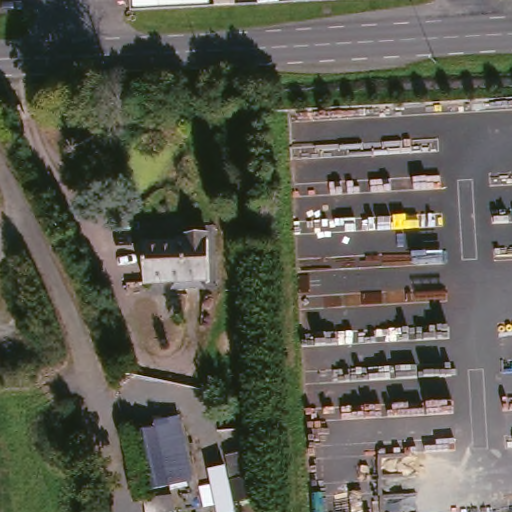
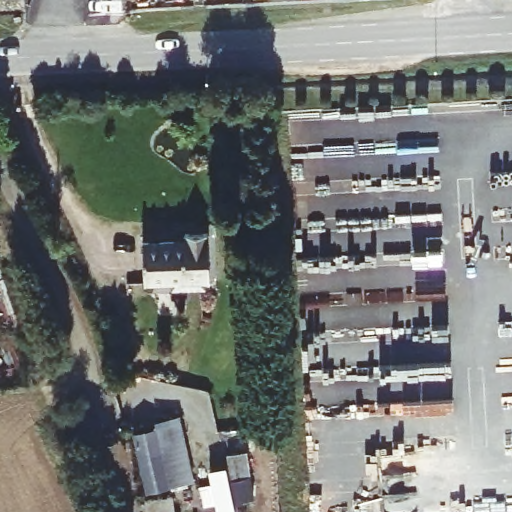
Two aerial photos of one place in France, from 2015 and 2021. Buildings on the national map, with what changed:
unchanged [(209,3),(134,6),(134,0),(208,0),(209,3)]
unchanged [(181,245),(180,235),(201,234),(203,283),(138,287),(134,247),(181,245)]
unchanged [(129,435),(151,430),(151,425),(174,420),(187,485),(140,494),(129,435)]

